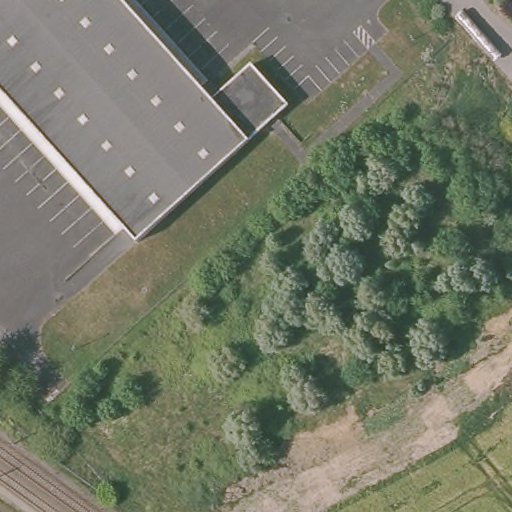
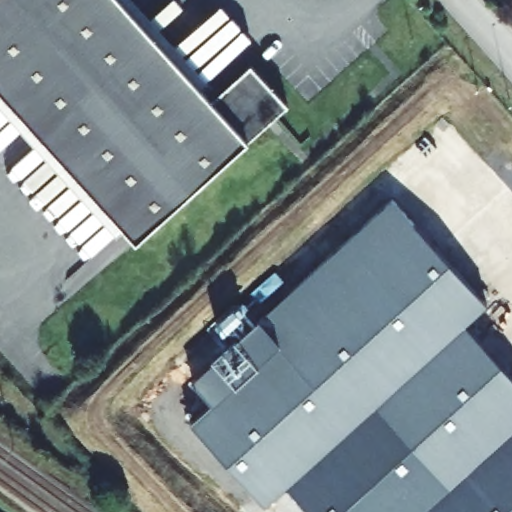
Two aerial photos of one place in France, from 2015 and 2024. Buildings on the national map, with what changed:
unchanged [(250,67),(287,109),(137,242),(0,88),(0,0),(121,0),(211,99),(250,67)]
new [(201,394),(402,213),(496,318),(475,337),(512,379),(512,451),(457,501),(383,420),(280,512),(267,512),(200,437),(222,417),(201,394)]
new [(295,498),(383,420),(457,501),(512,451),(512,512),(308,512),(295,498)]

